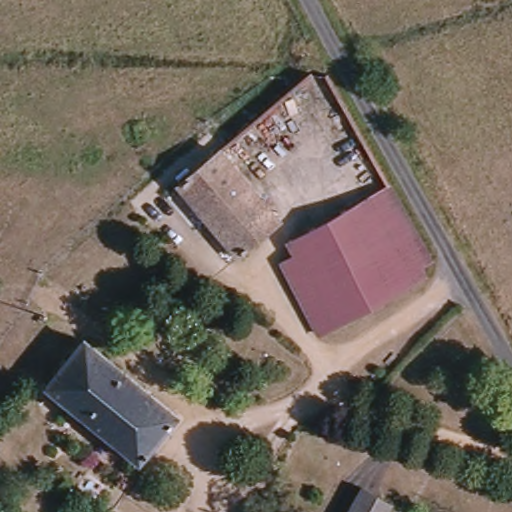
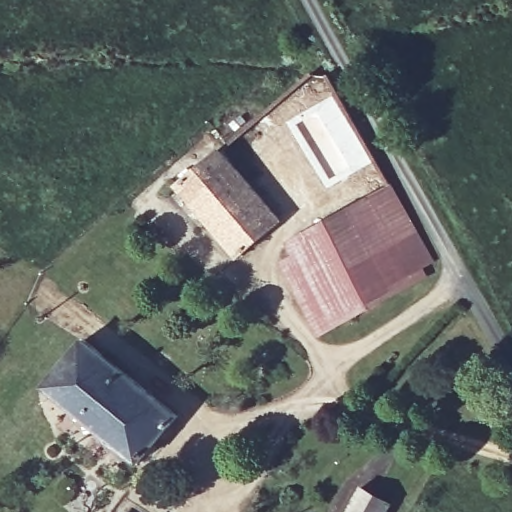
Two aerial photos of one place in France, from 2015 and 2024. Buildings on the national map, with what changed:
new [(296,98),(290,101),(285,96),(310,71),(318,75),(326,74),(335,90),(374,161),(326,190),(282,121),(303,108),(296,98)]
unchanged [(232,258),(170,187),(216,146),(278,219),(232,258)]
unchanged [(417,267),(425,278),(311,336),(275,265),(288,256),(281,240),(386,185),(428,262),(417,267)]
unchanged [(69,351),(45,329),(55,319),(175,417),(137,462),(41,384),(69,351)]
unchanged [(358,488),(387,505),(383,512),(344,512),(358,488)]

